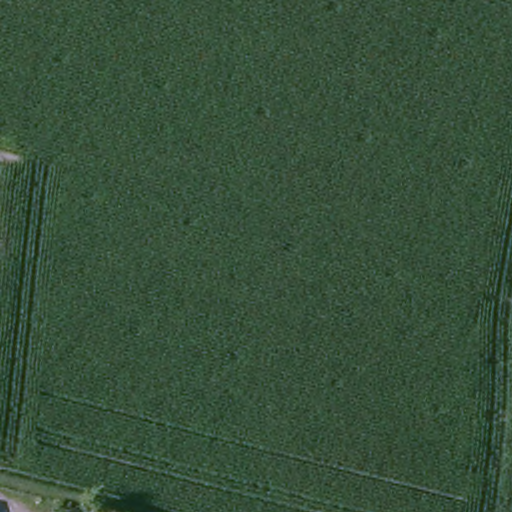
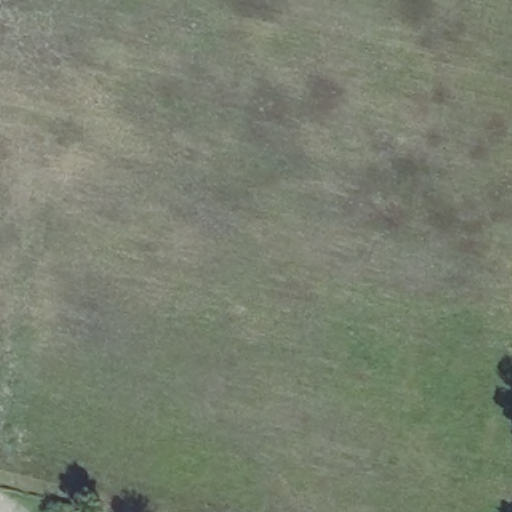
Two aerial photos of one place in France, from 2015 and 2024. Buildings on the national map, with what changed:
[]

